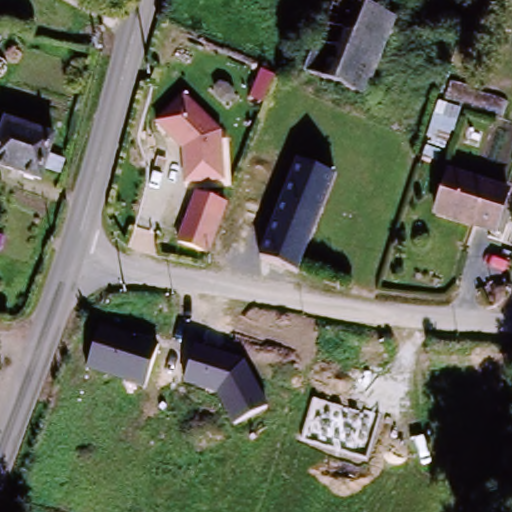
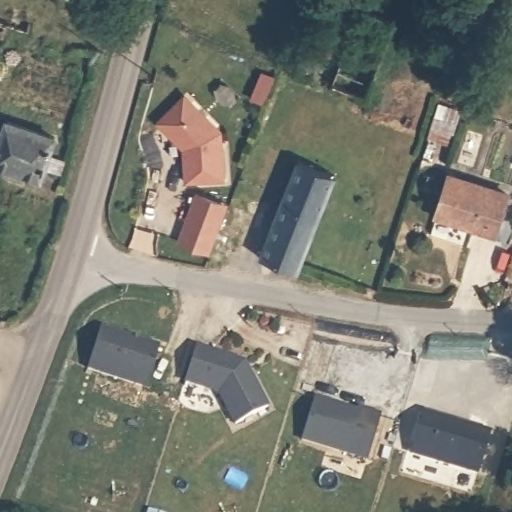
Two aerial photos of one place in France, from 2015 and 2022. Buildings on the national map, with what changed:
unchanged [(343,0),(351,0),(401,29),(361,102),(306,71),(343,0)]
unchanged [(25,37),(5,31),(7,22),(27,28),(25,37)]
unchanged [(2,31),(0,38),(0,30),(2,31)]
unchanged [(186,95),(222,134),(223,182),(185,185),(182,152),(155,125),(186,95)]
unchanged [(461,111),(450,146),(428,139),(439,105),(461,111)]
unchanged [(61,132),(50,173),(2,160),(5,149),(0,147),(0,123),(11,126),(13,119),(61,132)]
unchanged [(296,163),(336,179),(295,283),(256,267),(296,163)]
unchanged [(490,237),(436,212),(453,174),(508,199),(490,237)]
unchanged [(175,241),(187,211),(195,191),(229,204),(221,223),(210,253),(175,241)]
unchanged [(85,372),(97,330),(157,348),(143,390),(85,372)]
unchanged [(215,393),(182,383),(195,346),(245,363),(267,406),(232,427),(215,393)]
new [(357,410),(359,406),(381,413),(367,461),(301,440),(314,397),(357,410)]
new [(421,406),(486,427),(475,465),(409,445),(421,406)]

